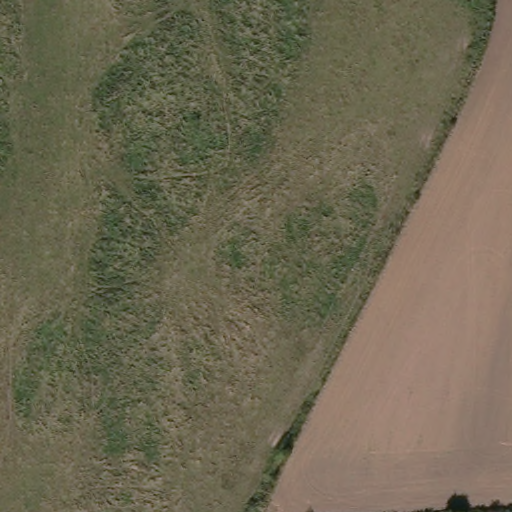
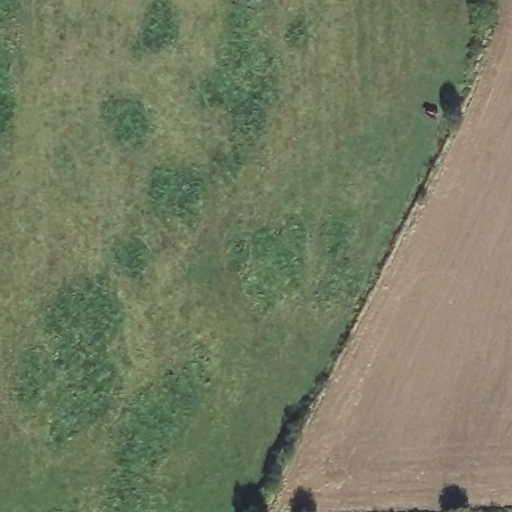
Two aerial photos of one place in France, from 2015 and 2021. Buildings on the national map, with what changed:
[]

